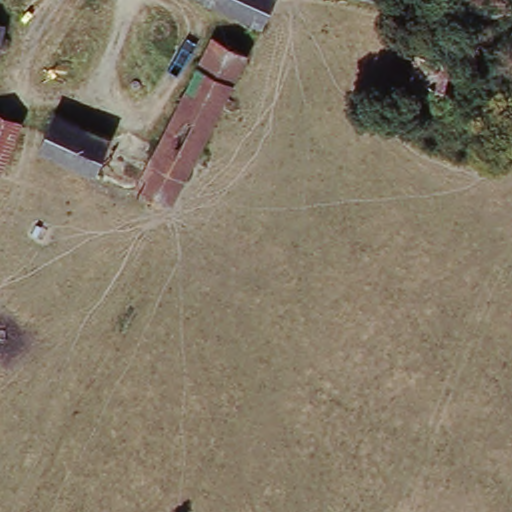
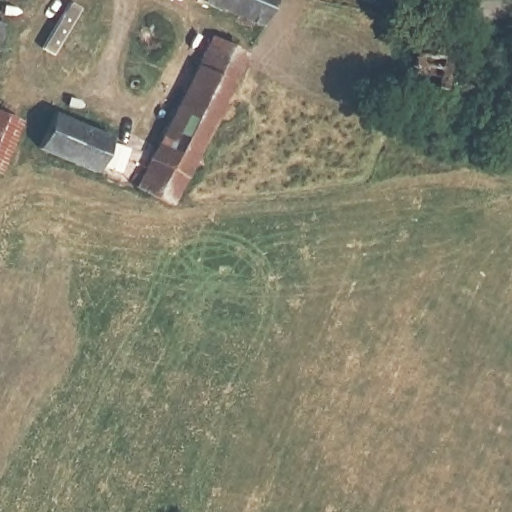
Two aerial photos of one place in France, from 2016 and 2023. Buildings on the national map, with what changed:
unchanged [(260,24),(211,0),(271,0),(260,24)]
unchanged [(27,14),(19,42),(14,41),(11,52),(0,49),(0,47),(3,37),(0,36),(0,7),(27,14)]
unchanged [(210,41),(244,57),(237,72),(174,205),(139,190),(210,41)]
unchanged [(410,87),(411,56),(446,55),(445,86),(410,87)]
unchanged [(56,107),(112,132),(95,171),(40,146),(56,107)]
unchanged [(21,121),(15,134),(0,168),(0,111),(21,121)]

